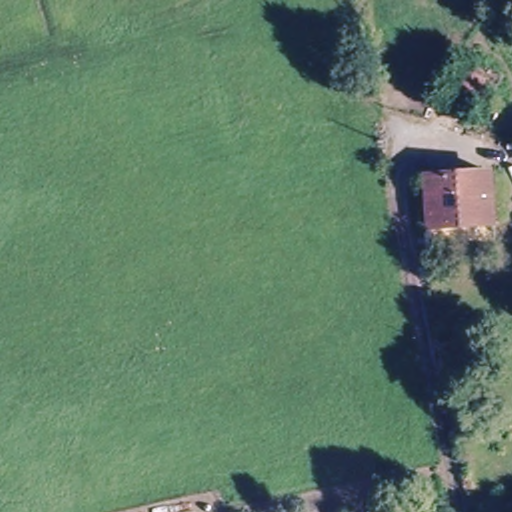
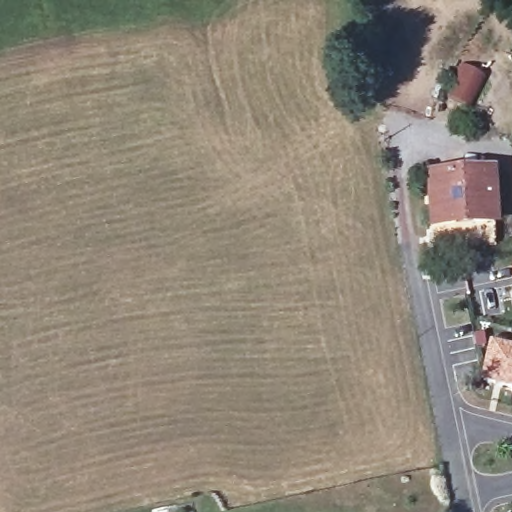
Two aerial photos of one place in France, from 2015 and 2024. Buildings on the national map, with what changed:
unchanged [(432,226),(427,179),(490,175),(494,222),(432,226)]
new [(511,266),(512,266),(512,271),(511,266)]
new [(512,351),(512,392),(478,383),(488,344),(512,351)]

